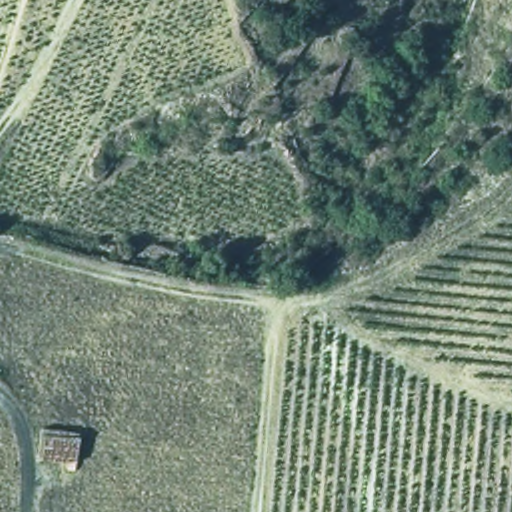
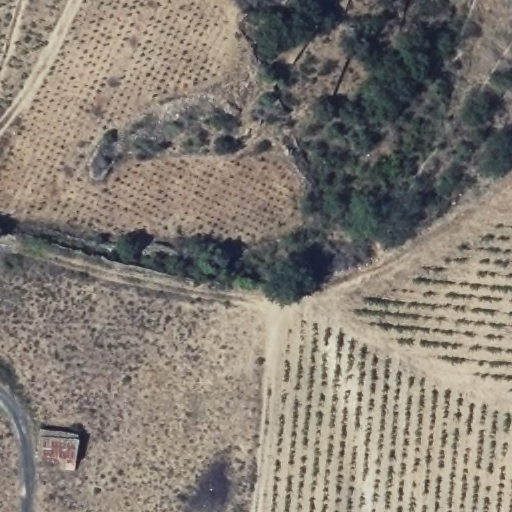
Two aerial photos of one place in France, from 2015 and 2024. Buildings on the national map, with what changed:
unchanged [(77,430),(77,463),(40,462),(40,427),(77,430)]

